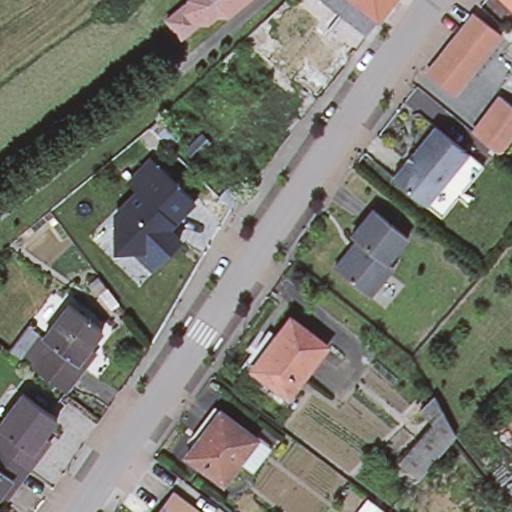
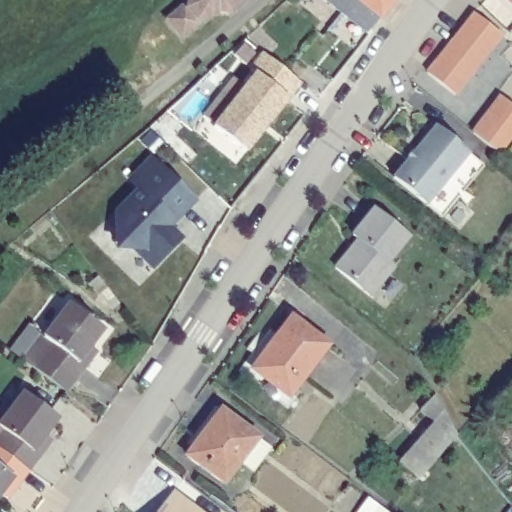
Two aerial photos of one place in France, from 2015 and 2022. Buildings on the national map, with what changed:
unchanged [(181,1),(184,1),(184,0),(236,0),(224,10),(214,9),(205,15),(195,16),(195,20),(178,34),(163,16),(181,1)]
unchanged [(369,34),(325,0),(354,0),(380,20),(369,34)]
unchanged [(380,20),(354,0),(396,0),(380,20)]
unchanged [(512,5),(507,0),(512,0),(512,5)]
unchanged [(503,32),(456,91),(429,69),(475,10),(476,10),(503,32)]
new [(234,75),(245,84),(259,69),(253,64),(264,52),(305,82),(250,149),(203,115),(234,75)]
unchanged [(512,99),(512,139),(502,151),(475,129),(504,93),(512,99)]
unchanged [(426,195),(392,168),(435,115),(468,143),(484,155),(461,184),(442,207),(426,195)]
unchanged [(202,136),(210,144),(195,159),(187,151),(202,136)]
unchanged [(145,257),(134,247),(117,247),(117,231),(117,211),(140,188),(130,179),(152,156),(196,198),(177,218),(169,218),(169,226),(175,231),(182,237),(160,259),(154,266),(145,257)]
unchanged [(230,187),(242,199),(232,212),(219,200),(230,187)]
unchanged [(360,246),(362,248),(368,240),(360,233),(382,208),(412,232),(392,258),(397,262),(375,291),(344,266),(360,246)]
unchanged [(34,355),(43,342),(37,338),(62,304),(95,329),(84,344),(92,351),(87,358),(70,381),(62,392),(27,365),(34,355)]
unchanged [(287,399),(252,372),(292,321),(327,348),(287,399)]
unchanged [(49,448),(32,472),(0,449),(0,426),(24,393),(60,419),(47,437),(53,442),(49,448)]
unchanged [(435,425),(424,415),(422,413),(437,395),(438,397),(447,415),(457,438),(450,446),(420,481),(400,464),(431,430),(435,425)]
unchanged [(225,484),(189,458),(221,414),(257,439),(225,484)]
unchanged [(0,501),(0,449),(32,472),(15,494),(10,500),(4,496),(0,501)]
unchanged [(193,512),(159,512),(172,495),(193,512)]

